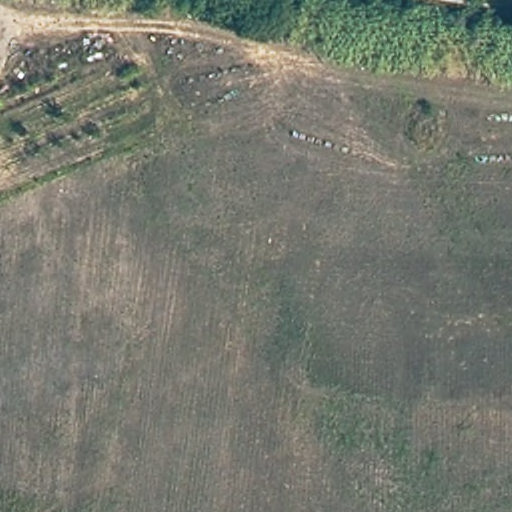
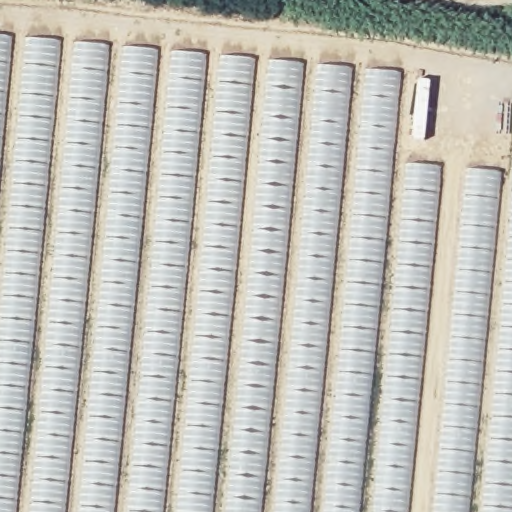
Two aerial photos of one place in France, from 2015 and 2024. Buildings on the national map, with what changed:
new [(0,36),(398,74),(390,162),(512,175),(512,512),(0,512),(0,36)]

